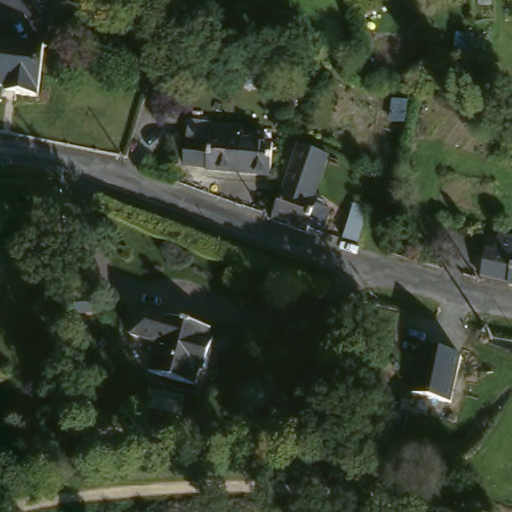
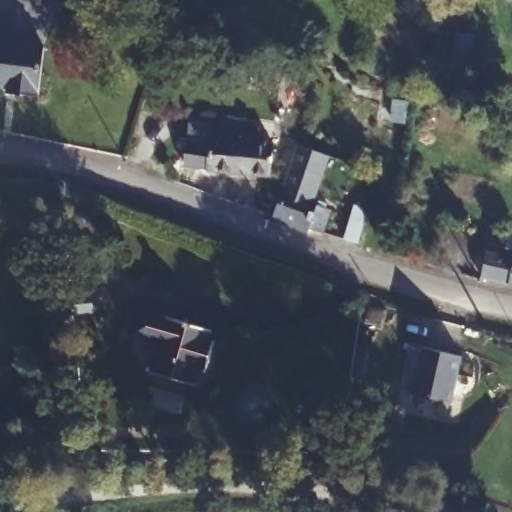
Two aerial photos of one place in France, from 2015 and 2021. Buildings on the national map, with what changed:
unchanged [(469,66),(469,71),(453,70),(457,34),(473,36),(469,66)]
unchanged [(0,81),(0,35),(49,41),(43,93),(19,90),(10,89),(11,82),(0,81)]
unchanged [(393,121),(395,101),(409,103),(406,124),(393,121)]
unchanged [(263,129),(262,143),(278,144),(276,177),(213,171),(213,170),(190,166),(193,143),(195,121),(219,124),(248,128),(263,129)]
unchanged [(288,184),(300,151),(331,163),(317,196),(288,184)]
unchanged [(288,184),(317,196),(341,206),(332,234),(275,219),(288,184)]
unchanged [(365,225),(358,245),(345,240),(353,215),(354,216),(357,207),(365,210),(365,225)]
unchanged [(493,279),(499,252),(507,253),(511,236),(512,236),(512,282),(493,279)]
unchanged [(216,326),(213,335),(220,337),(211,367),(204,365),(199,382),(155,368),(164,339),(136,331),(144,304),(216,326)]
unchanged [(455,402),(415,396),(424,345),(463,358),(455,402)]

